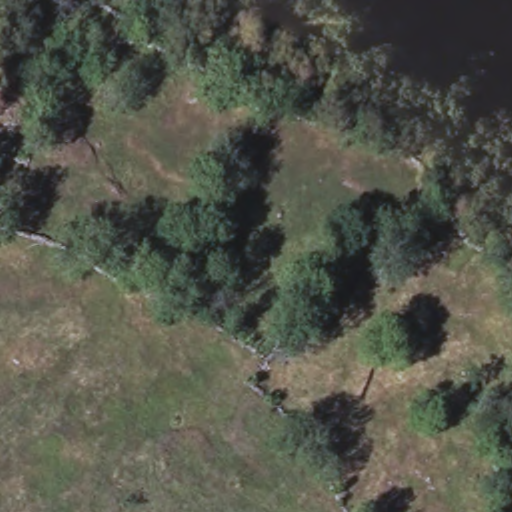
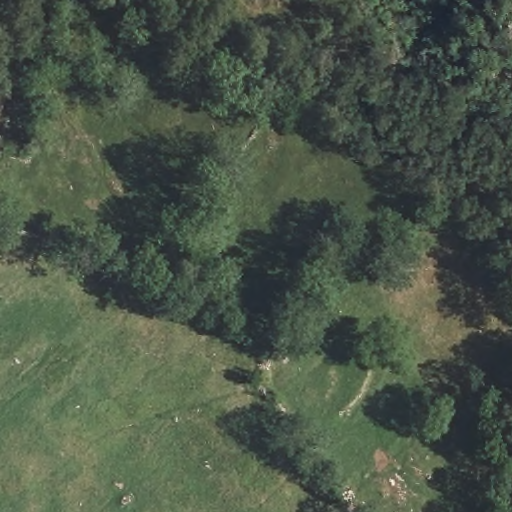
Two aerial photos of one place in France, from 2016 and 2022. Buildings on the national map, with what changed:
[]

